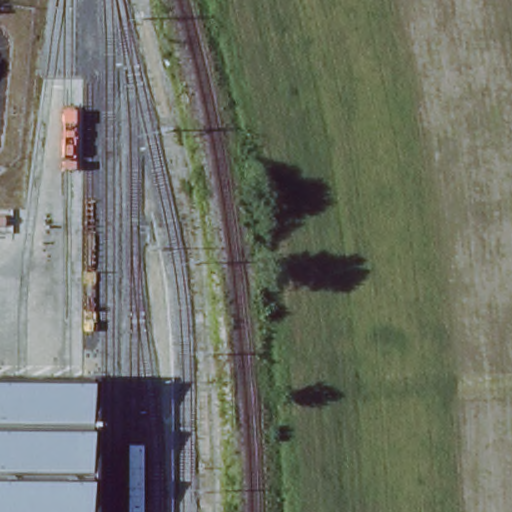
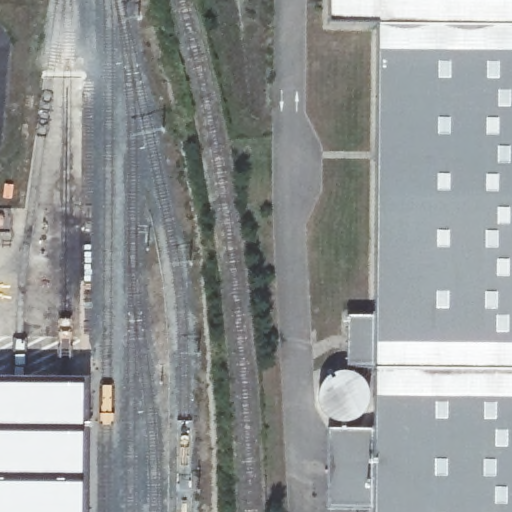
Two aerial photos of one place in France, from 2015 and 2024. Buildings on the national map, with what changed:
new [(328,510),(326,417),(320,407),(319,395),(321,384),(331,374),(342,370),(342,317),(364,315),(360,24),(325,24),(326,0),(512,0),(512,512),(374,512),(375,507),(328,510)]
unchanged [(87,379),(86,512),(0,512),(0,378),(87,379)]

